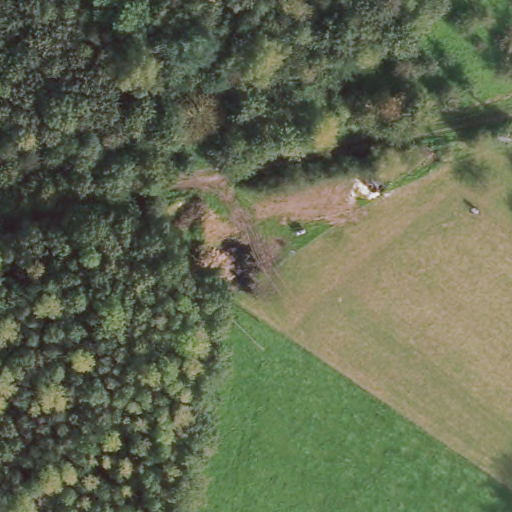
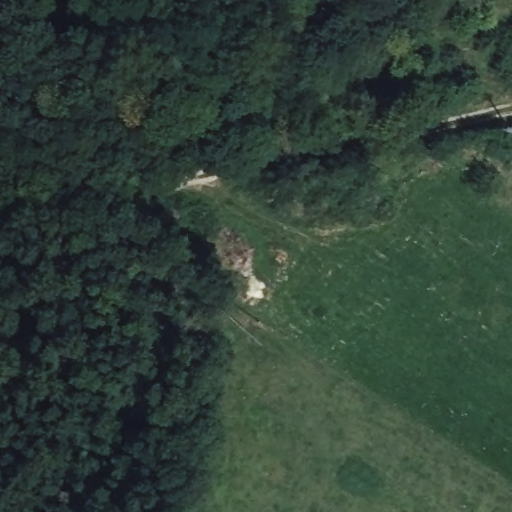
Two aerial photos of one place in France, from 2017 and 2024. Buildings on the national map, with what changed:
unchanged [(323,111),(312,91),(345,78),(363,70),(370,85),(352,93),(353,96),(323,111)]

